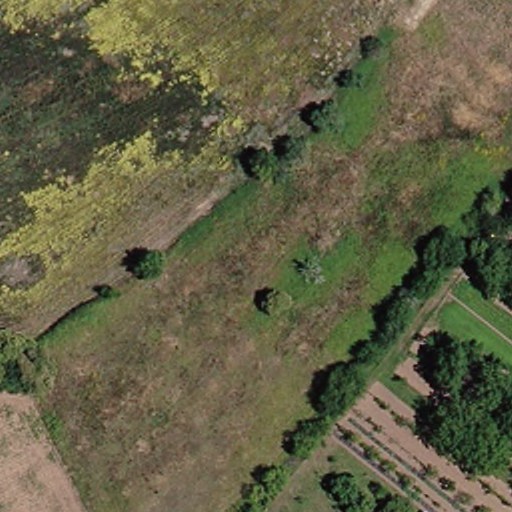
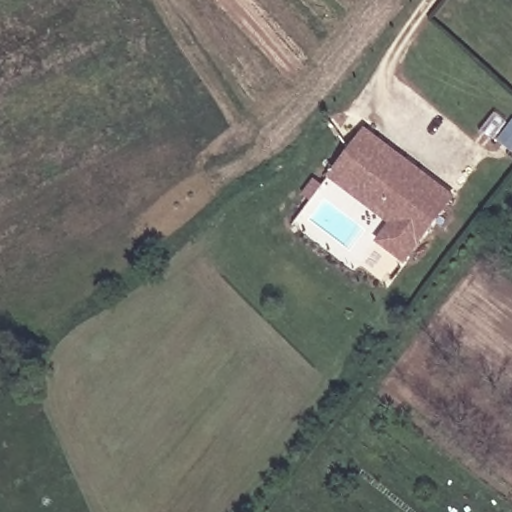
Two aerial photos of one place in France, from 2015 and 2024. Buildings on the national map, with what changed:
new [(455,196),(404,264),(374,240),(388,222),(327,176),(364,126),(455,196)]

